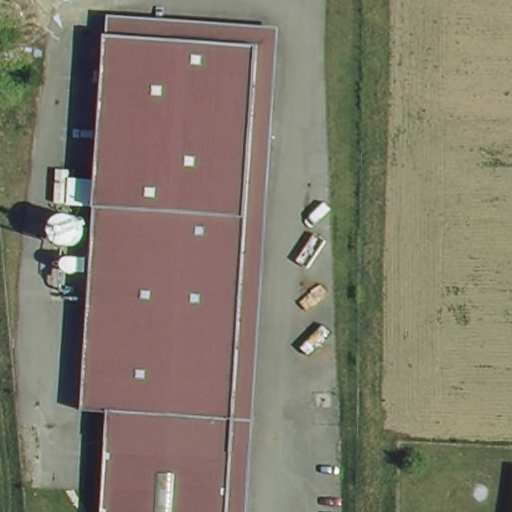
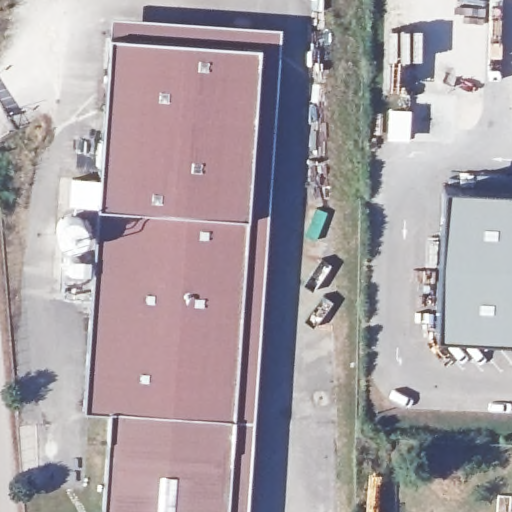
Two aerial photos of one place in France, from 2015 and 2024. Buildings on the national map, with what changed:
unchanged [(81,406),(110,8),(280,23),(242,512),(98,512),(106,408),(81,406)]
new [(435,333),(442,181),(512,184),(512,336),(435,333)]
unchanged [(510,512),(512,477),(512,512),(510,512)]

